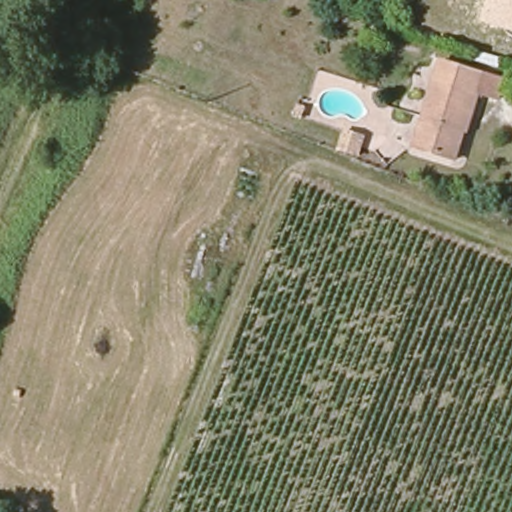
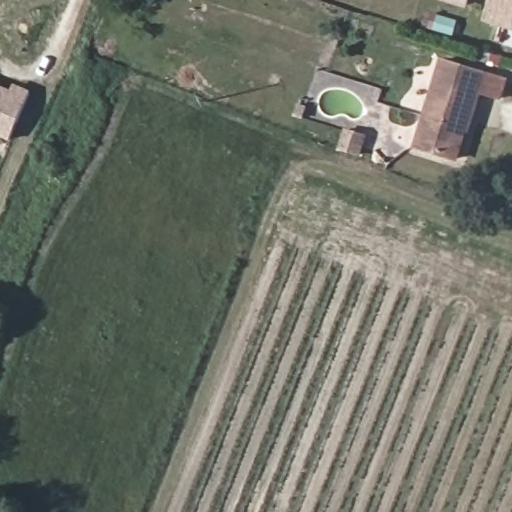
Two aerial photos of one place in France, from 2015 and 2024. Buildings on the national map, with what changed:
new [(463,8),(436,0),(465,0),(463,8)]
unchanged [(489,0),(512,0),(512,30),(483,21),(489,0)]
unchanged [(455,128),(446,157),(407,144),(435,60),(496,81),(490,100),(473,94),(461,130),(455,128)]
new [(0,136),(0,85),(11,90),(14,83),(32,91),(11,141),(0,136)]
unchanged [(352,153),(335,146),(342,127),(359,134),(352,153)]

